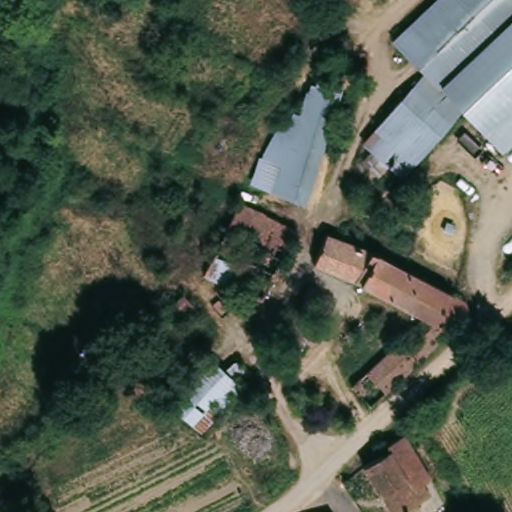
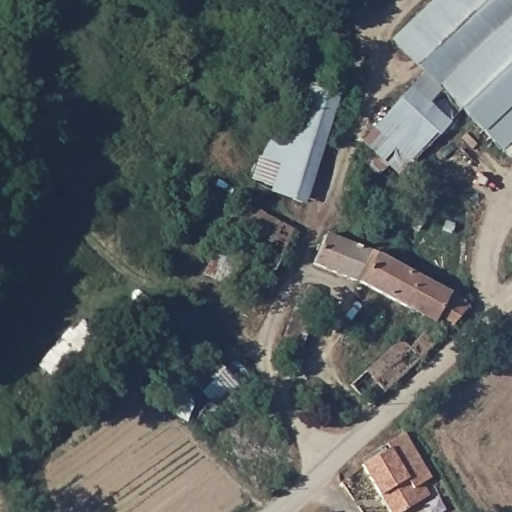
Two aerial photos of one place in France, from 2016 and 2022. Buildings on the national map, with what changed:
unchanged [(361,130),(426,70),(402,47),(446,0),(512,0),(512,16),(443,89),(463,110),(399,169),(396,171),(390,165),(369,140),(361,130)]
unchanged [(443,89),(512,16),(512,151),(510,153),(477,123),(463,110),(443,89)]
unchanged [(327,77),(357,90),(338,139),(291,119),(296,107),(305,111),(316,86),(327,77)]
unchanged [(264,151),(274,136),(282,120),(289,124),(291,119),(338,139),(315,202),(271,185),(254,179),(264,151)]
unchanged [(230,285),(248,252),(223,240),(240,205),(267,216),(297,230),(283,255),(260,300),(230,285)]
unchanged [(390,299),(364,285),(342,275),(314,264),(325,236),(379,250),(423,275),(420,281),(405,308),(390,299)]
unchanged [(248,252),(230,285),(206,273),(223,240),(248,252)]
unchanged [(405,308),(420,281),(423,275),(463,298),(466,310),(431,346),(368,405),(351,383),(402,339),(409,347),(422,336),(416,328),(422,317),(405,308)]
unchanged [(317,290),(307,310),(297,305),(307,285),(317,290)]
unchanged [(183,292),(202,310),(190,322),(185,326),(167,308),(183,292)]
unchanged [(226,377),(207,395),(210,397),(190,416),(174,400),(212,362),(226,377)]
unchanged [(392,440),(389,436),(407,425),(432,470),(425,474),(431,486),(395,507),(365,455),(392,440)]
unchanged [(335,509),(336,512),(329,512),(335,509)]

